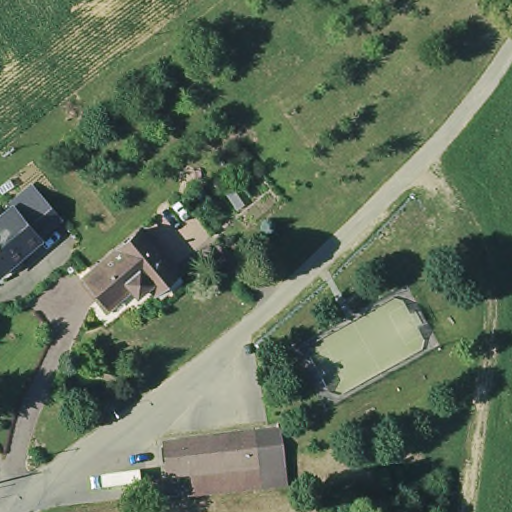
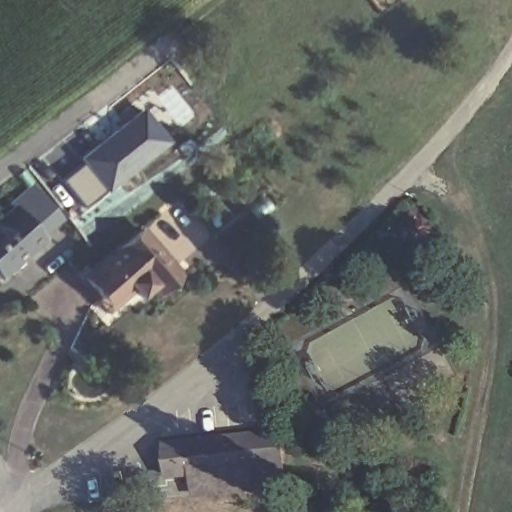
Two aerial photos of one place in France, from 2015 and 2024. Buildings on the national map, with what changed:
new [(139,106),(168,141),(103,192),(79,162),(75,156),(139,106)]
new [(79,162),(103,192),(80,207),(58,179),(79,162)]
unchanged [(12,207),(10,204),(33,187),(60,222),(39,240),(12,207)]
unchanged [(25,251),(27,254),(0,274),(0,215),(12,207),(39,240),(25,251)]
unchanged [(99,291),(79,267),(138,220),(172,263),(152,280),(148,275),(130,288),(126,283),(106,300),(99,291)]
unchanged [(282,479),(277,480),(251,483),(248,462),(253,462),(249,431),(269,427),(275,427),(282,479)]
unchanged [(248,462),(188,468),(162,471),(161,442),(249,431),(253,462),(248,462)]
unchanged [(248,462),(251,483),(191,488),(188,468),(248,462)]

